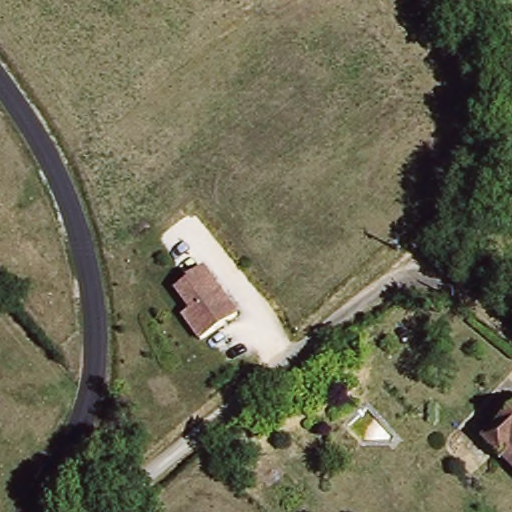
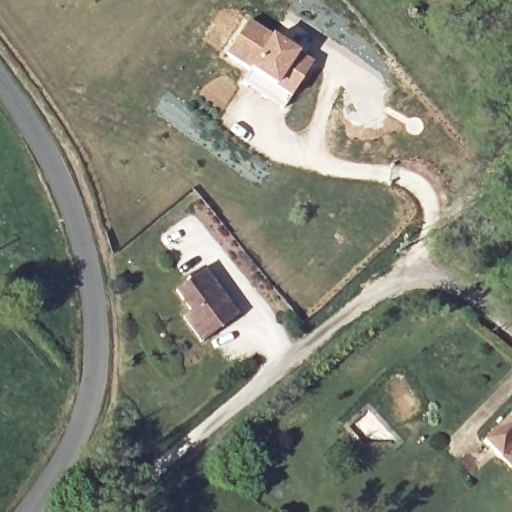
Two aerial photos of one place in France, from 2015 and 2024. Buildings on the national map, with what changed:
new [(248,19),(315,63),(292,99),(226,55),(248,19)]
unchanged [(181,319),(190,313),(174,293),(186,282),(185,279),(201,268),(236,314),(201,343),(181,319)]
unchanged [(512,411),(512,476),(479,446),(512,411)]

